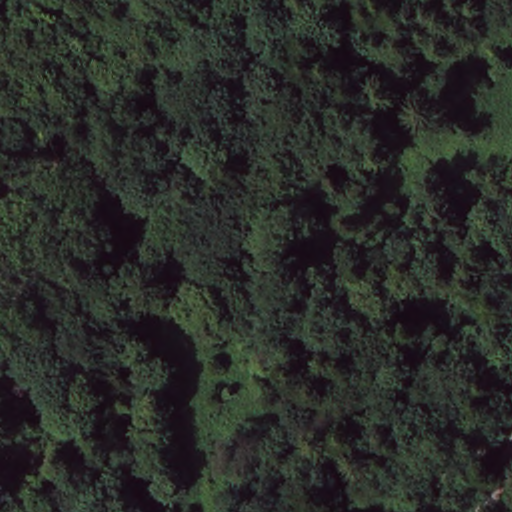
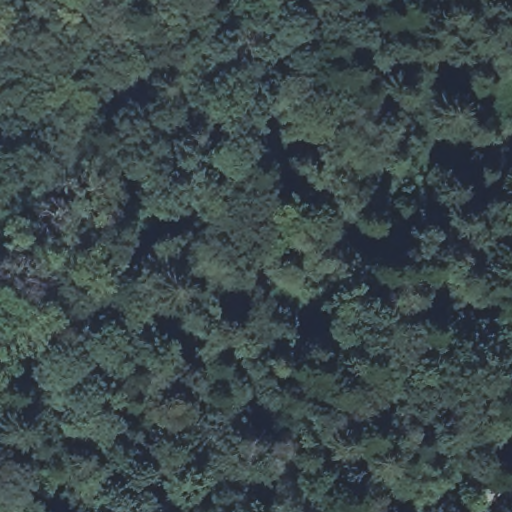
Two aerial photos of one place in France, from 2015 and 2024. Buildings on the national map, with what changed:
[]

